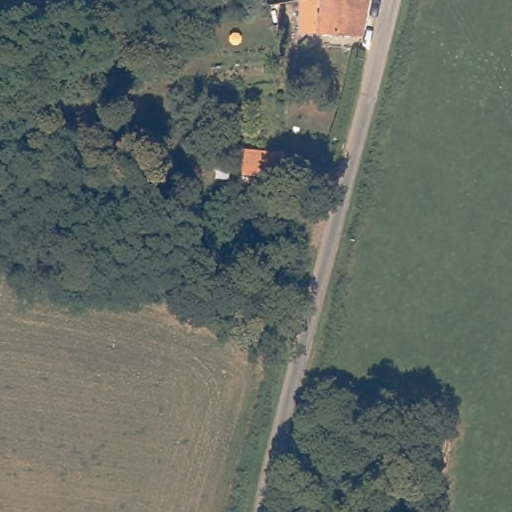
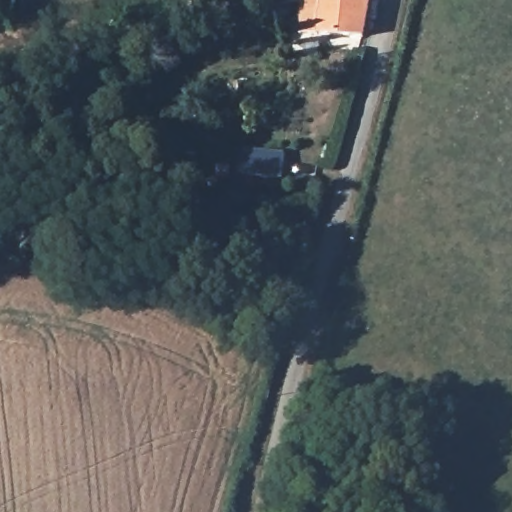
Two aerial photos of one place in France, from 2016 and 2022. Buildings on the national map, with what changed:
unchanged [(315,4),(338,3),(374,6),(366,42),(304,40),(302,7),(315,4)]
unchanged [(249,156),(287,157),(287,160),(285,186),(247,184),(249,165),(249,156)]

